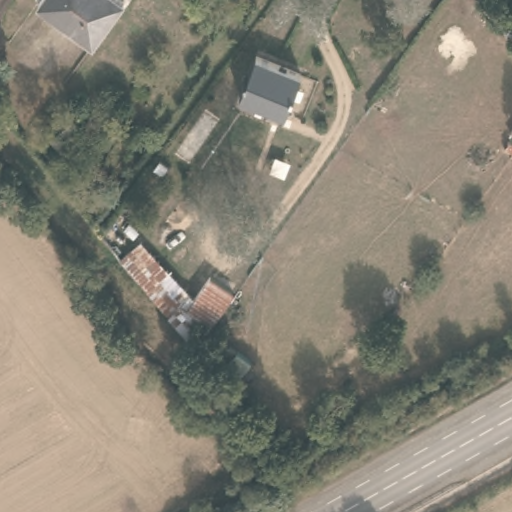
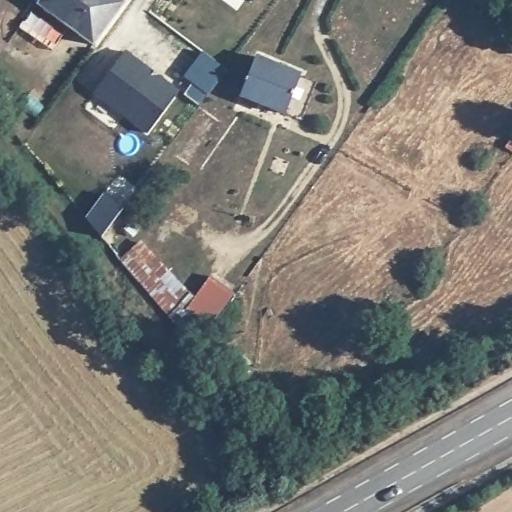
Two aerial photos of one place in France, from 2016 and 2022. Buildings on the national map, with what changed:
unchanged [(42,0),(120,0),(125,3),(94,45),(38,5),(42,0)]
new [(252,0),(254,0),(253,1),(252,0)]
new [(147,134),(94,94),(127,50),(180,90),(147,134)]
unchanged [(241,96),(256,57),(300,75),(285,115),(241,96)]
new [(101,237),(85,217),(104,194),(123,209),(101,237)]
unchanged [(139,232),(135,237),(126,231),(130,225),(139,232)]
unchanged [(195,296),(210,275),(236,295),(212,325),(202,317),(187,338),(119,259),(139,240),(195,296)]

